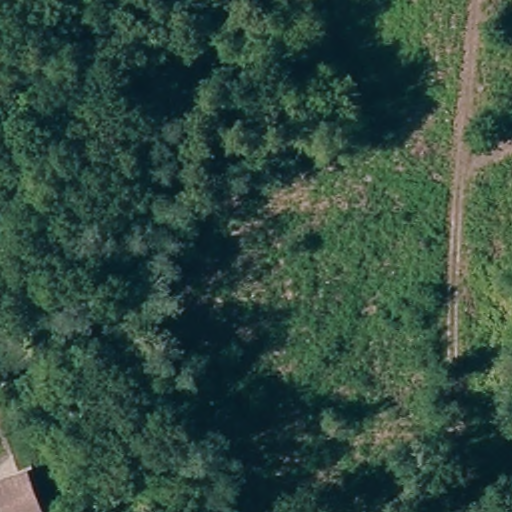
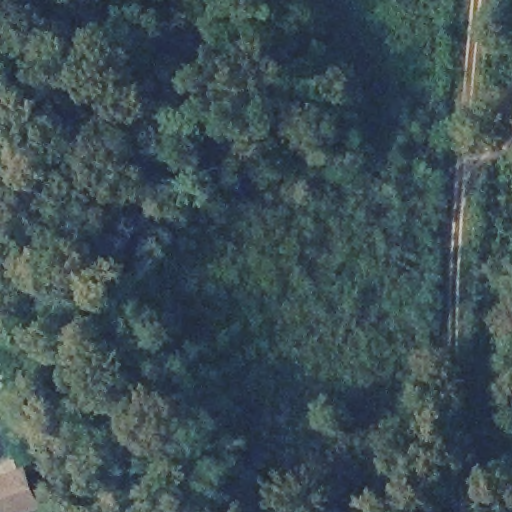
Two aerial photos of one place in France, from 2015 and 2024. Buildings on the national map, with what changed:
unchanged [(11,478),(21,511),(19,512),(0,512),(0,482),(11,478)]

